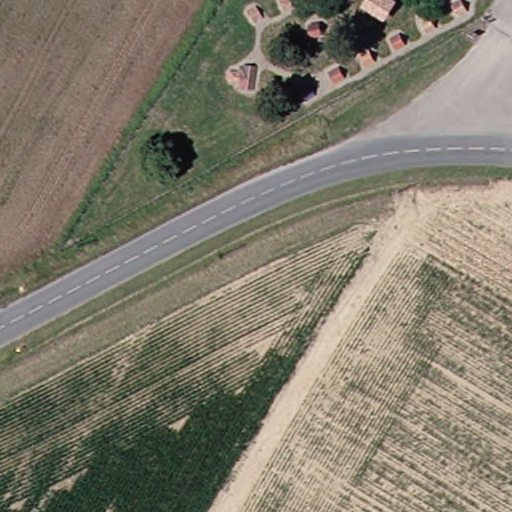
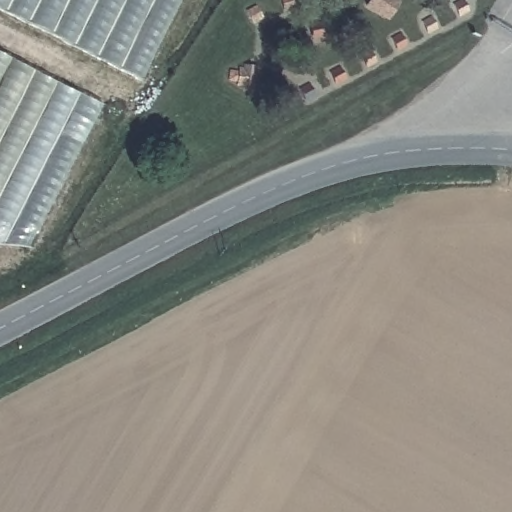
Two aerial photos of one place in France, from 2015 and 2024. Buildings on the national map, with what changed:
new [(140,79),(0,9),(0,0),(180,0),(140,79)]
new [(29,247),(0,245),(0,53),(101,104),(29,247)]

